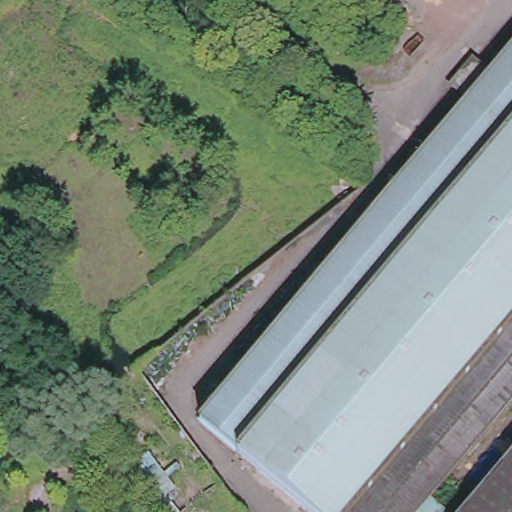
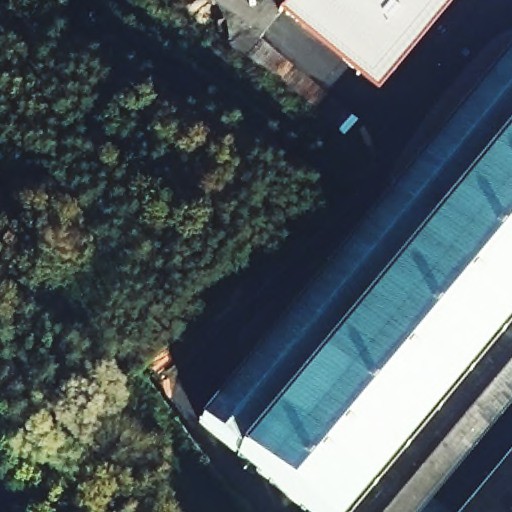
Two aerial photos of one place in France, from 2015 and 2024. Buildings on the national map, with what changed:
new [(377,94),(280,10),(288,0),(454,0),(377,94)]
unchanged [(455,88),(478,61),(495,76),(512,56),(512,403),(417,512),(310,512),(200,413),(471,103),(455,88)]
unchanged [(466,512),(512,460),(512,512),(466,512)]

